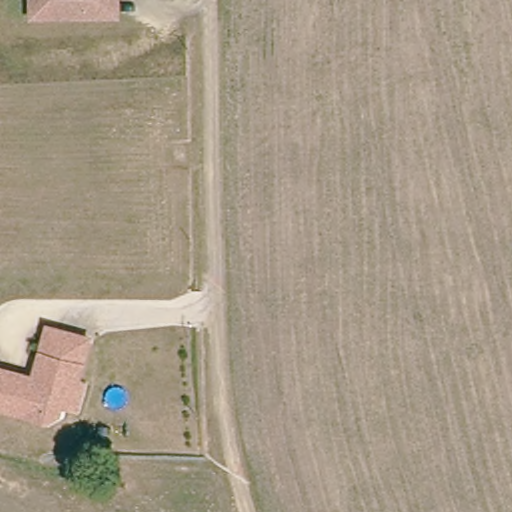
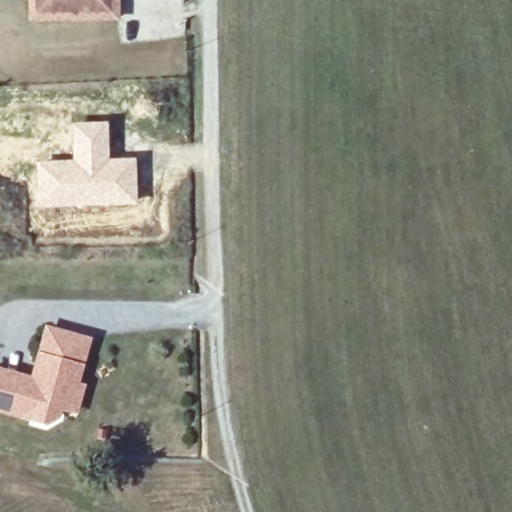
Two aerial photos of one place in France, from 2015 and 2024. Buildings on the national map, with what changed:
unchanged [(121,22),(101,21),(101,22),(35,19),(36,0),(122,0),(121,22)]
new [(72,159),(71,122),(109,121),(110,158),(136,157),(138,204),(36,208),(35,161),(72,159)]
unchanged [(59,406),(57,414),(47,421),(0,411),(0,373),(31,380),(35,364),(43,328),(84,337),(74,383),(80,384),(74,409),(59,406)]

